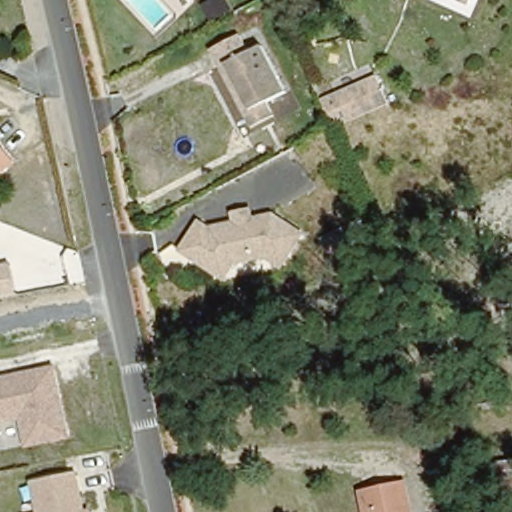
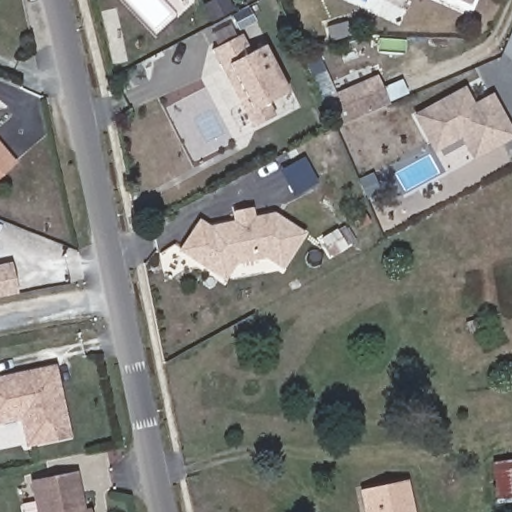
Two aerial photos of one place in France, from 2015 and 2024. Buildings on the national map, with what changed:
unchanged [(221,68),(212,49),(241,35),(250,53),(263,46),(286,94),(267,102),(274,116),(250,129),(221,68)]
unchanged [(387,102),(388,104),(332,127),(320,100),(377,76),(387,102)]
new [(434,150),(414,115),(462,89),(472,105),(486,97),(490,95),(497,108),(512,135),(512,136),(473,157),(461,135),(434,150)]
unchanged [(0,168),(0,150),(10,160),(0,168)]
unchanged [(202,269),(172,252),(189,222),(201,230),(204,226),(262,210),(294,226),(272,258),(256,249),(224,258),(214,275),(202,269)]
unchanged [(17,295),(0,299),(0,266),(12,263),(17,295)]
unchanged [(0,425),(0,377),(57,366),(72,439),(27,448),(19,421),(0,425)]
unchanged [(512,457),(512,496),(502,498),(494,460),(512,457)]
unchanged [(90,509),(91,512),(37,512),(31,482),(78,475),(86,510),(90,509)]
unchanged [(364,512),(360,491),(408,481),(413,512),(364,512)]

